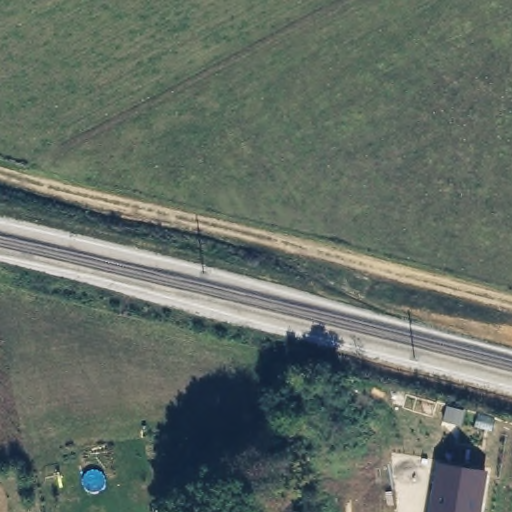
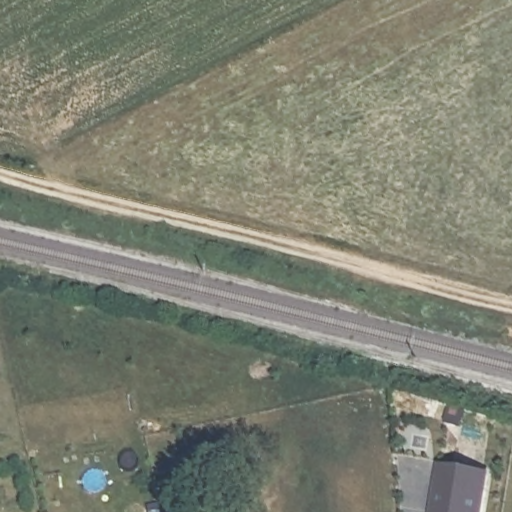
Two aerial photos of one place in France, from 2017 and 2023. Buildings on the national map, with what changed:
unchanged [(487,471),(481,512),(428,512),(436,462),(487,471)]

